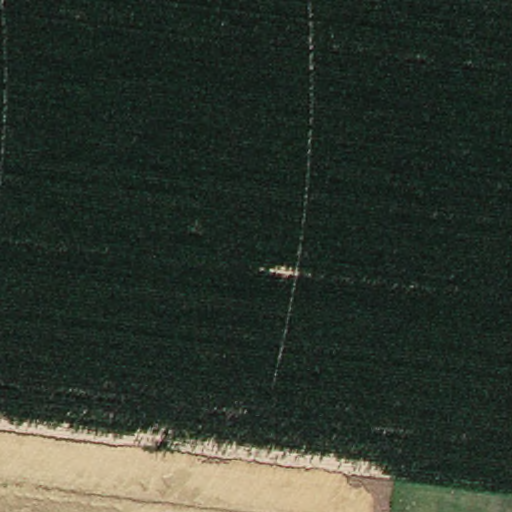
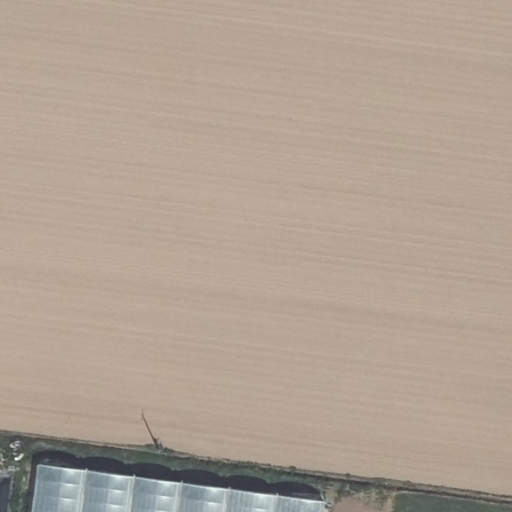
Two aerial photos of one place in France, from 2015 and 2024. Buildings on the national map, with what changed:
new [(320,512),(33,512),(40,465),(321,506),(320,512)]

